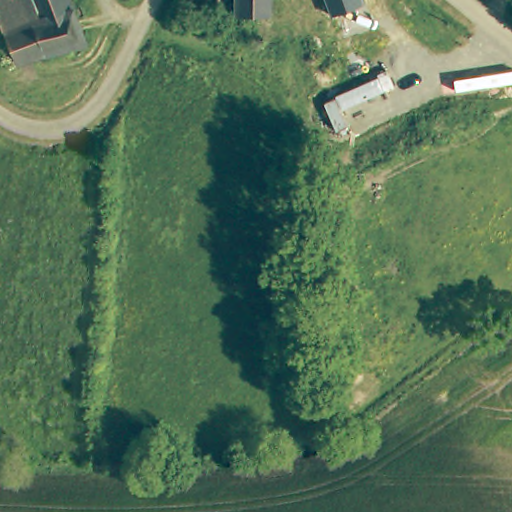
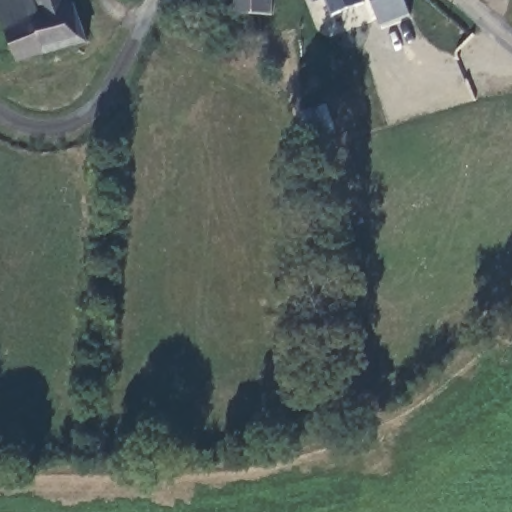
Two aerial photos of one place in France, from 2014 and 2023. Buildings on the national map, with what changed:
unchanged [(6,32),(0,16),(0,0),(71,0),(73,7),(6,32)]
unchanged [(261,19),(240,20),(239,0),(275,0),(276,19),(261,19)]
unchanged [(332,17),(325,0),(366,0),(367,2),(332,17)]
new [(375,27),(366,0),(401,0),(406,17),(375,27)]
unchanged [(73,7),(86,42),(19,67),(6,32),(73,7)]
unchanged [(244,45),(241,44),(238,42),(236,40),(235,36),(235,34),(236,30),(238,27),(240,25),(243,25),(247,24),(250,25),(252,27),(254,30),(255,32),(255,35),(254,39),(253,41),(250,44),(247,45),(244,45)]

